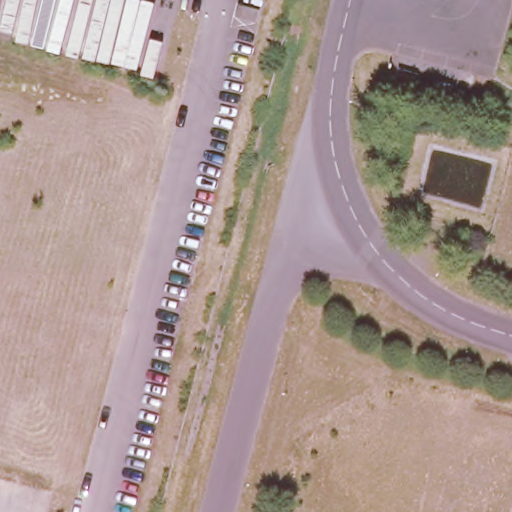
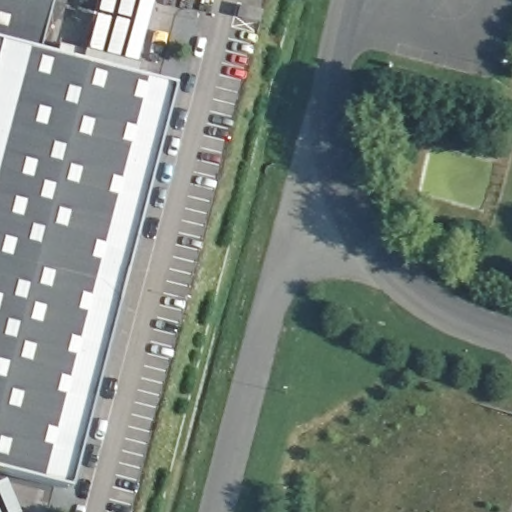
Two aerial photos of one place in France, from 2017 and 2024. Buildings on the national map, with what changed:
new [(49,0),(36,52),(168,87),(64,489),(0,473),(0,0),(49,0)]
unchanged [(259,9),(257,21),(236,15),(239,4),(259,9)]
unchanged [(453,85),(450,95),(432,90),(435,80),(453,85)]

